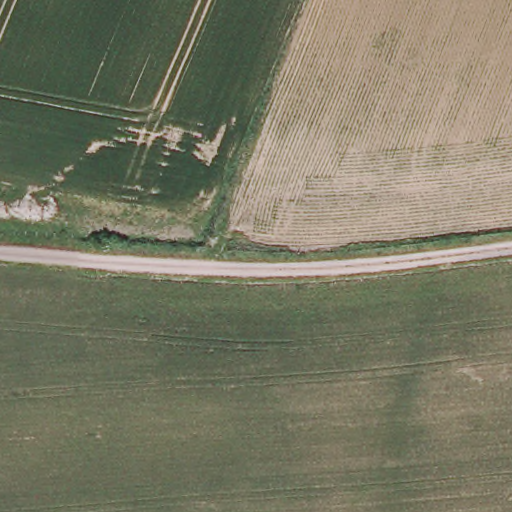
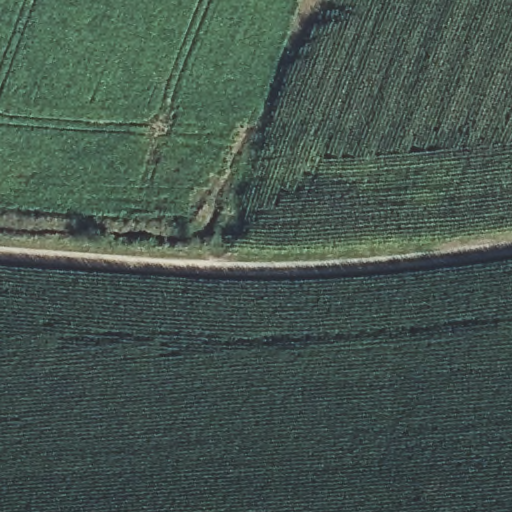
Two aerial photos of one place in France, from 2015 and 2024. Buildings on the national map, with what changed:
unchanged [(277,187),(276,203),(253,200),(254,185),(277,187)]

